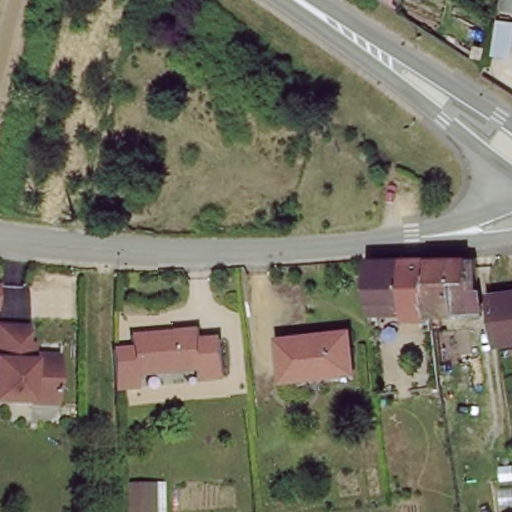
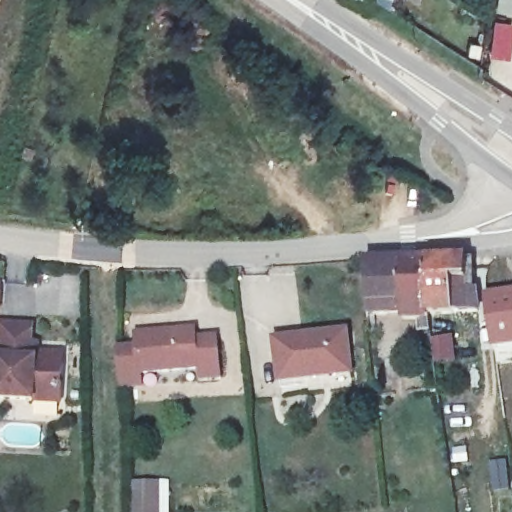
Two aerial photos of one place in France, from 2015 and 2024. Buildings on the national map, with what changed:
unchanged [(506,0),(512,0),(512,11),(505,9),(506,0)]
unchanged [(512,30),(509,53),(491,50),(495,20),(512,23),(512,30)]
unchanged [(432,258),(455,257),(477,256),(480,283),(473,284),(475,288),(481,288),(484,309),(465,310),(448,310),(448,315),(435,316),(433,309),(432,258)]
unchanged [(433,309),(371,313),(370,304),(368,291),(366,275),(365,260),(386,259),(420,258),(432,258),(433,309)]
unchanged [(487,295),(512,292),(512,338),(494,341),(487,295)]
unchanged [(423,328),(422,318),(435,316),(436,327),(423,328)]
unchanged [(205,382),(205,370),(146,374),(147,388),(126,389),(126,386),(122,354),(123,351),(143,349),(142,335),(200,330),(202,344),(223,342),(225,368),(226,380),(205,382)]
unchanged [(346,330),(350,369),(280,376),(275,337),(346,330)]
unchanged [(38,351),(38,361),(64,363),(63,369),(61,408),(0,404),(0,375),(3,332),(33,334),(32,351),(38,351)]
unchanged [(465,353),(467,369),(455,372),(452,356),(465,353)]
unchanged [(175,479),(177,512),(134,512),(133,482),(175,479)]

